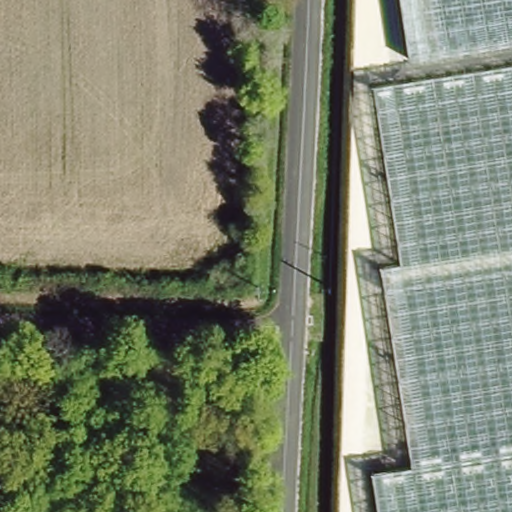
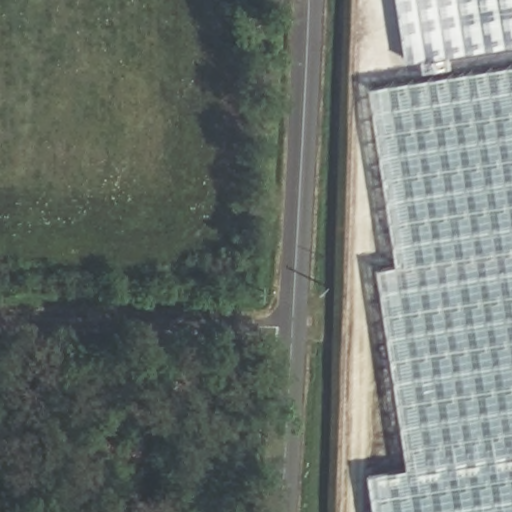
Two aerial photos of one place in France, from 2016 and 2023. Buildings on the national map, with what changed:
unchanged [(409,55),(400,0),(512,0),(512,34),(409,55)]
unchanged [(371,470),(411,465),(380,266),(402,263),(372,85),(512,62),(512,512),(378,512),(371,470)]

